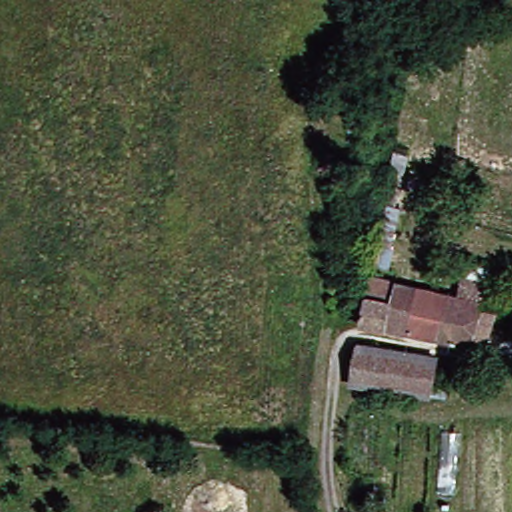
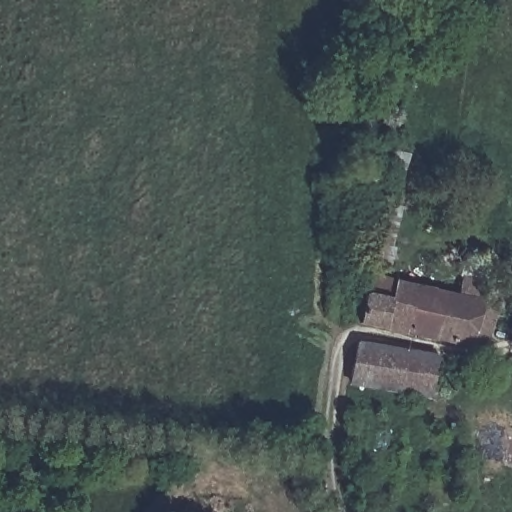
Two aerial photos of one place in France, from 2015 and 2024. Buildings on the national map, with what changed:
unchanged [(385,264),(387,253),(401,255),(400,265),(385,264)]
unchanged [(496,280),(498,265),(508,267),(506,281),(496,280)]
unchanged [(474,346),(400,330),(383,326),(356,320),(362,290),(366,271),(394,277),(484,298),(494,300),(483,348),(474,346)]
unchanged [(400,392),(346,382),(353,345),(407,355),(400,392)]
unchanged [(437,361),(431,397),(400,392),(407,355),(437,361)]

